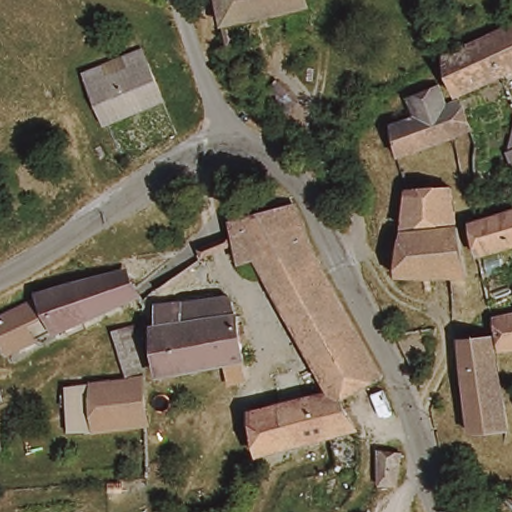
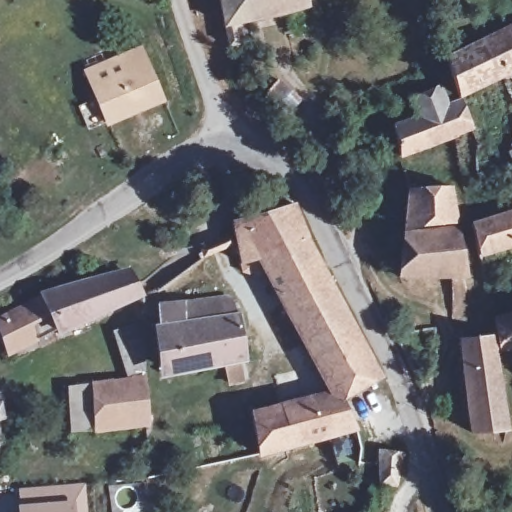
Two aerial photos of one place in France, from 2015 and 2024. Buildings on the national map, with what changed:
unchanged [(309,0),(311,10),(266,17),(223,26),(223,25),(220,3),(219,1),(219,0),(309,0)]
unchanged [(512,21),(512,74),(473,94),(460,100),(451,75),(450,70),(444,55),(485,35),(512,21)]
unchanged [(165,101),(110,126),(88,74),(120,61),(142,51),(150,68),(165,101)]
unchanged [(460,107),(470,129),(438,142),(399,159),(397,152),(393,139),(390,129),(415,119),(409,101),(411,100),(438,90),(445,106),(456,101),(460,107)]
unchanged [(451,185),(457,219),(405,225),(407,211),(410,190),(451,185)]
unchanged [(305,348),(289,311),(278,289),(262,254),(243,260),(233,219),(260,211),(291,201),(297,200),(302,215),(311,240),(325,268),(345,307),(370,360),(379,379),(357,391),(353,393),(338,400),(333,390),(326,393),(305,348)]
unchanged [(503,210),(512,208),(512,241),(479,250),(473,219),(503,210)]
unchanged [(458,226),(462,252),(466,275),(415,276),(398,275),(403,239),(404,232),(458,226)]
unchanged [(135,281),(137,286),(141,295),(90,320),(61,334),(60,331),(11,347),(1,322),(45,296),(45,292),(105,277),(131,270),(135,281)]
unchanged [(155,313),(173,311),(172,305),(222,296),(225,317),(240,312),(243,338),(246,370),(213,376),(212,368),(171,375),(162,376),(155,313)]
unchanged [(494,313),(512,310),(512,349),(499,351),(494,313)]
unchanged [(133,353),(133,360),(133,396),(134,408),(135,427),(103,429),(61,432),(59,386),(120,381),(114,357),(106,329),(132,325),(133,353)]
unchanged [(467,433),(460,372),(455,341),(490,336),(498,388),(503,428),(467,433)]
unchanged [(333,390),(338,400),(347,418),(354,432),(353,432),(312,443),(302,446),(280,452),(252,460),(245,461),(240,440),(253,436),(248,417),(281,407),(326,393),(333,390)]
unchanged [(3,451),(0,452),(0,438),(3,451)]
unchanged [(405,485),(381,485),(380,452),(404,452),(405,485)]
new [(85,482),(88,512),(18,512),(17,487),(85,482)]

